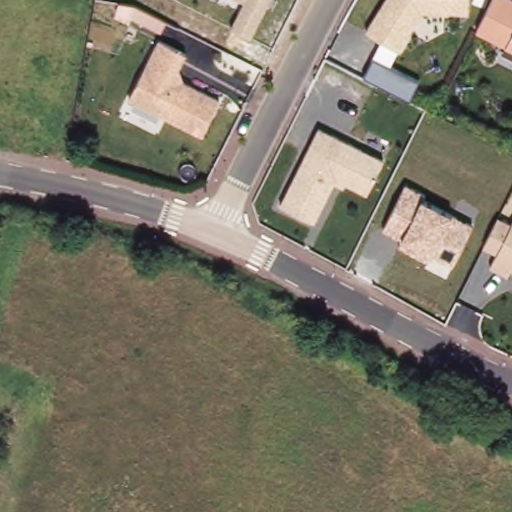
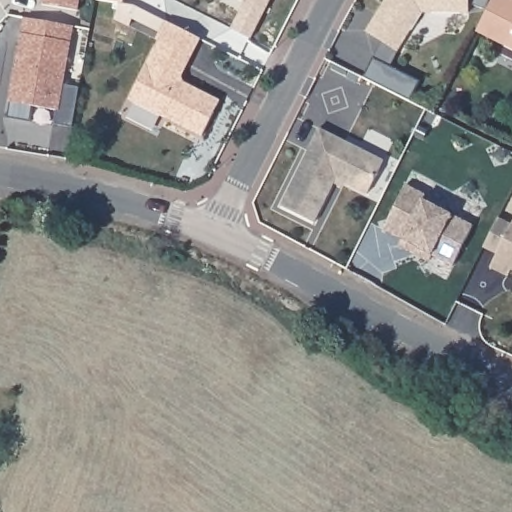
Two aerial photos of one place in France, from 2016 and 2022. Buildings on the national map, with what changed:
new [(42,5),(43,0),(80,0),(78,11),(42,5)]
new [(102,0),(123,0),(122,4),(102,0)]
unchanged [(242,3),(238,0),(271,0),(252,38),(230,26),(242,3)]
unchanged [(400,52),(368,33),(388,0),(471,0),(471,14),(433,15),(422,16),(418,21),(400,52)]
unchanged [(473,34),(491,0),(512,0),(512,55),(473,34)]
new [(60,110),(9,102),(24,18),(74,26),(60,110)]
unchanged [(159,40),(156,38),(165,21),(201,40),(182,76),(179,70),(185,84),(221,100),(202,137),(129,100),(159,40)]
unchanged [(397,51),(390,66),(418,81),(410,100),(363,76),(372,57),(380,41),(397,51)]
unchanged [(280,206),(319,128),(381,161),(364,195),(344,185),(341,189),(333,184),(313,224),(280,206)]
unchanged [(405,184),(427,194),(425,201),(451,214),(471,224),(451,264),(432,255),(429,262),(397,247),(401,238),(382,230),(405,184)]
unchanged [(512,226),(512,276),(510,280),(490,269),(496,258),(483,251),(499,219),(512,226)]

